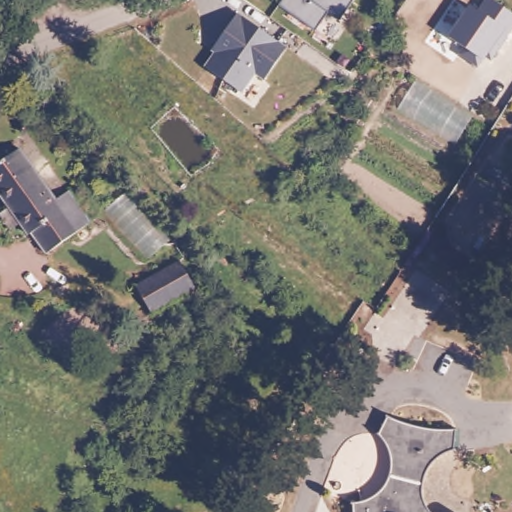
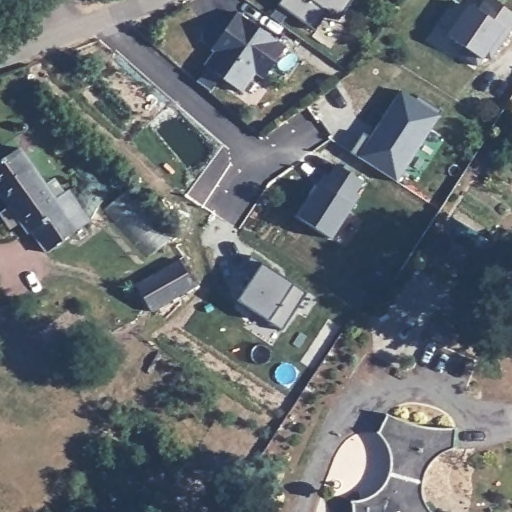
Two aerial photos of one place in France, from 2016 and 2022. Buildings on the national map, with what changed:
unchanged [(278,3),(280,0),(353,0),(343,21),(327,11),(315,29),(278,3)]
unchanged [(478,11),(488,0),(496,0),(512,9),(512,23),(484,60),(481,57),(478,66),(459,55),(462,43),(449,36),(469,5),(478,11)]
unchanged [(207,68),(203,67),(214,52),(209,51),(239,12),(286,44),(262,82),(253,75),(242,92),(222,78),(211,92),(199,81),(207,68)]
new [(363,133),(370,137),(401,90),(416,100),(419,96),(442,110),(438,116),(440,117),(398,181),(358,157),(350,153),(363,133)]
unchanged [(47,252),(0,190),(0,160),(21,146),(58,200),(72,190),(93,221),(47,252)]
new [(324,175),(328,178),(337,165),(363,181),(354,195),(359,198),(332,239),(298,217),(324,175)]
new [(279,333),(235,301),(251,278),(239,271),(249,255),(276,273),(272,279),(278,284),(283,278),(306,294),(279,333)]
unchanged [(146,310),(131,284),(175,261),(189,286),(146,310)]
unchanged [(367,496),(384,483),(389,469),(388,446),(374,431),(387,412),(420,422),(454,423),(455,446),(438,454),(424,470),(422,493),(431,511),(433,512),(349,512),(349,500),(367,496)]
unchanged [(470,508),(470,512),(457,512),(462,508),(470,508)]

